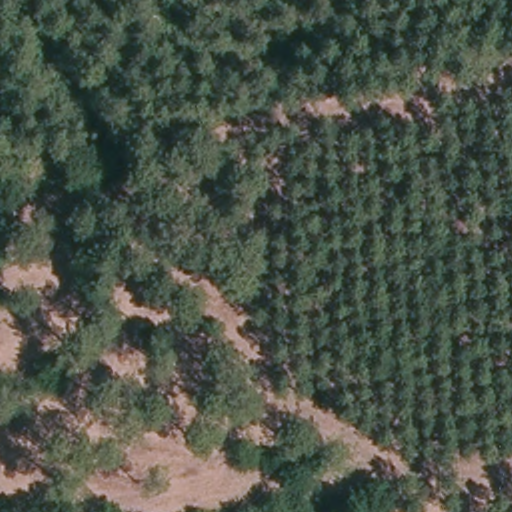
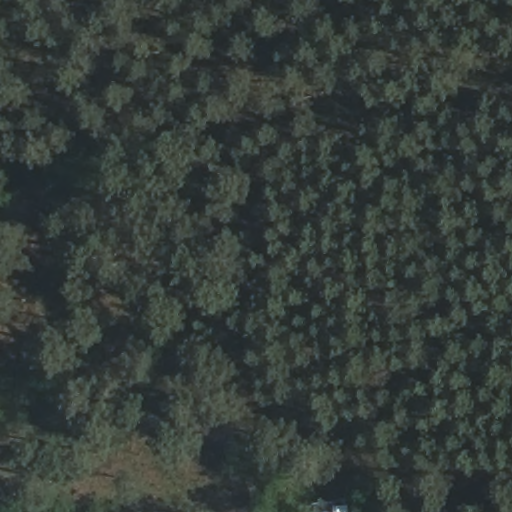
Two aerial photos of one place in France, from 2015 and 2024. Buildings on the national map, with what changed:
[]

